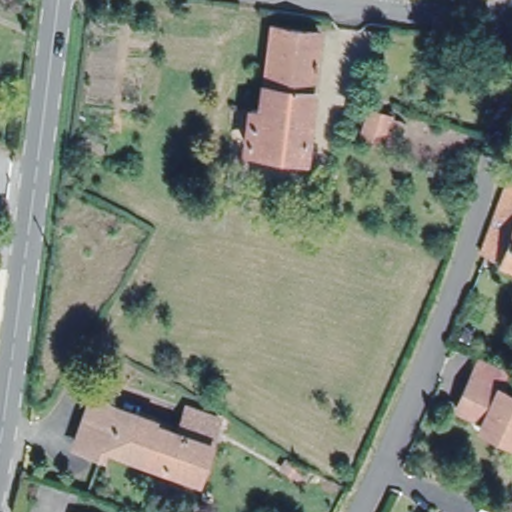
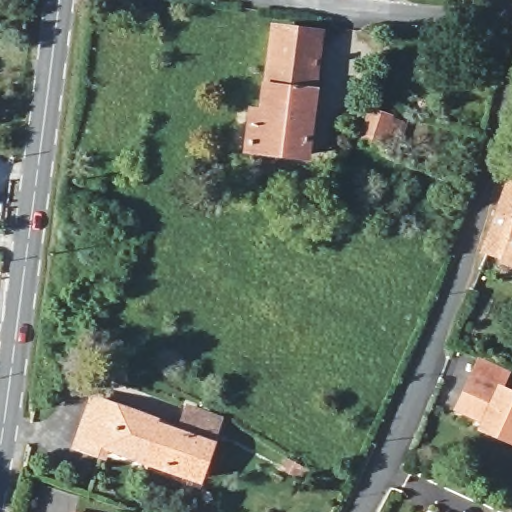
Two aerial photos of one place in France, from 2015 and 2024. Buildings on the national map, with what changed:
unchanged [(320,33),(305,155),(246,149),(250,111),(261,113),(271,28),(320,33)]
unchanged [(393,115),(392,118),(402,121),(393,149),(360,138),(371,108),(393,115)]
unchanged [(506,173),(512,175),(512,266),(477,253),(506,173)]
unchanged [(499,386),(512,392),(512,440),(480,426),(482,422),(455,408),(472,374),(498,388),(499,386)]
unchanged [(153,411),(150,418),(177,427),(187,398),(220,409),(206,448),(190,441),(183,460),(141,444),(139,449),(105,436),(102,444),(76,435),(92,389),(153,411)]

